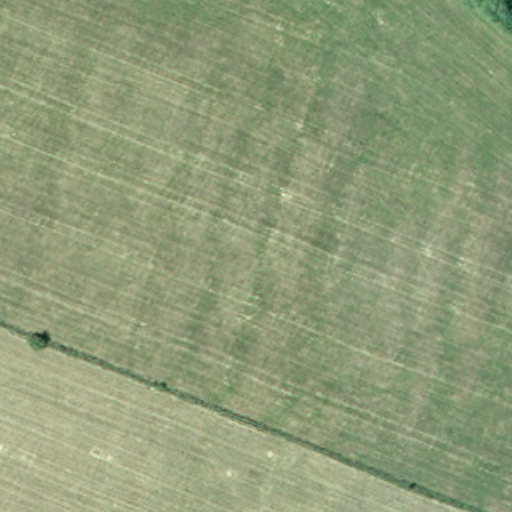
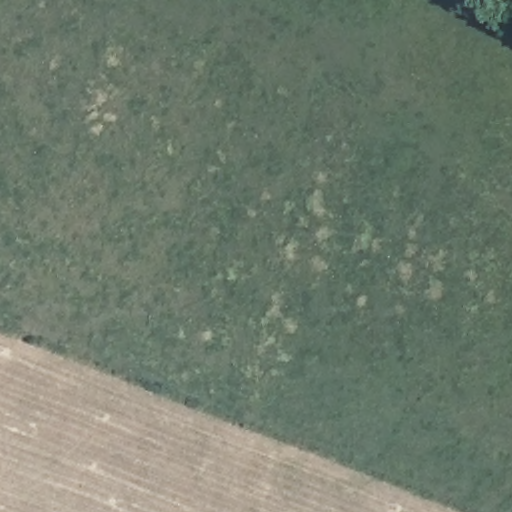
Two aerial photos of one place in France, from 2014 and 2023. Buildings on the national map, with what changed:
[]

